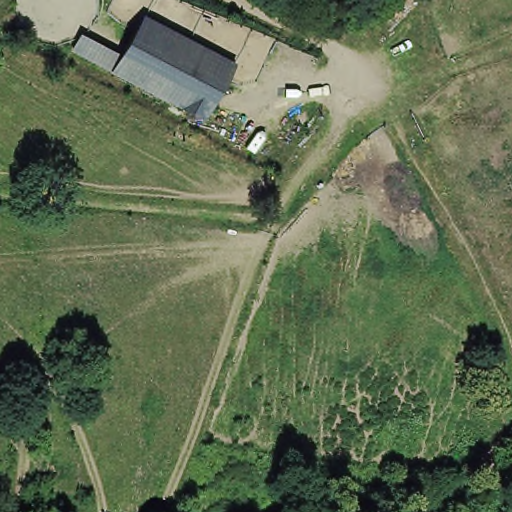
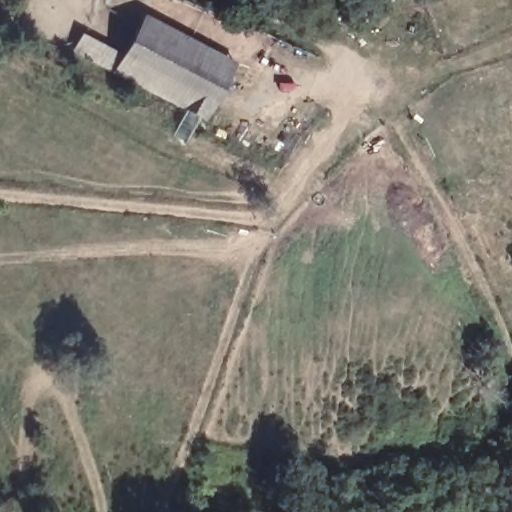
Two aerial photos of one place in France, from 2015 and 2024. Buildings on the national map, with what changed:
unchanged [(235,60),(206,115),(116,69),(76,49),(84,34),(123,54),(144,14),(235,60)]

